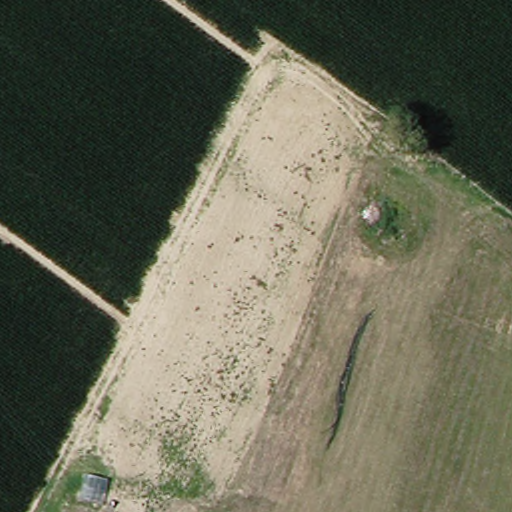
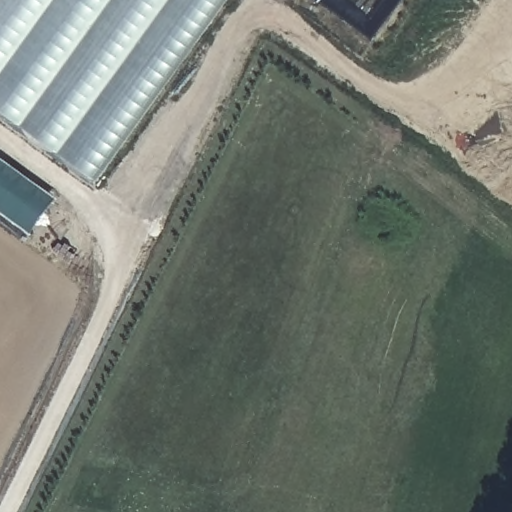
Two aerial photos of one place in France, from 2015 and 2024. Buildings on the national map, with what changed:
new [(0,113),(0,0),(228,0),(96,184),(0,113)]
new [(0,213),(0,157),(57,198),(32,235),(0,213)]

